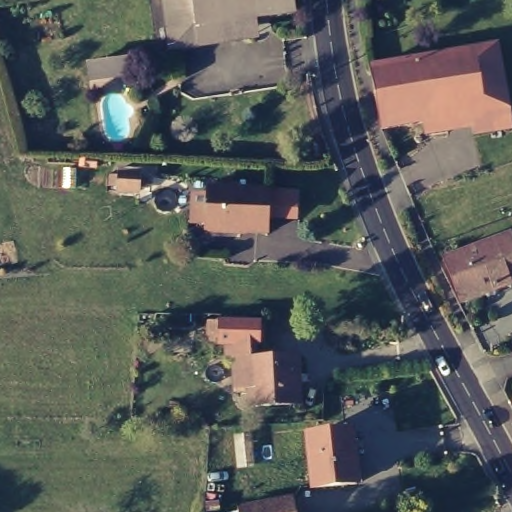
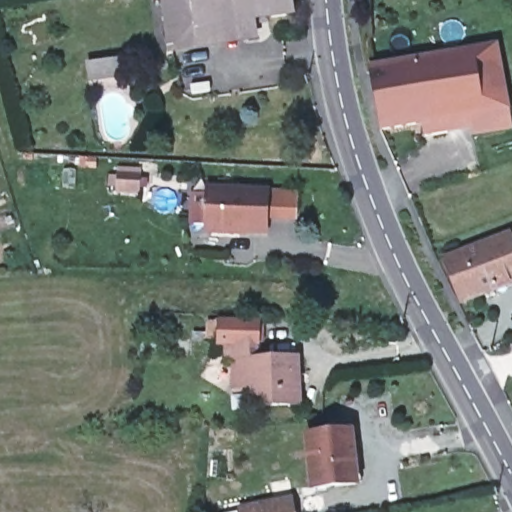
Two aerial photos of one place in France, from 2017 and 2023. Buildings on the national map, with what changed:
unchanged [(251,20),(199,27),(171,31),(167,0),(292,0),(294,14),(251,20)]
unchanged [(254,35),(173,46),(171,31),(199,27),(251,20),(254,35)]
unchanged [(512,127),(460,136),(457,116),(485,112),(474,50),(497,46),(512,127)]
unchanged [(425,133),(424,122),(382,130),(370,69),(474,50),(485,112),(457,116),(445,118),(447,129),(425,133)]
unchanged [(127,75),(92,79),(90,64),(125,60),(127,75)]
unchanged [(137,192),(119,191),(120,172),(139,174),(137,192)]
unchanged [(267,234),(206,231),(208,188),(270,190),(267,234)]
unchanged [(477,297),(475,292),(452,301),(435,260),(500,235),(502,237),(512,234),(512,277),(484,288),(485,293),(477,297)]
unchanged [(292,389),(294,410),(247,412),(247,393),(231,394),(230,368),(222,369),(222,349),(215,349),(215,348),(204,347),(204,327),(215,328),(255,329),(255,331),(257,331),(257,348),(255,348),(255,350),(252,350),(252,366),(290,365),(292,382),(295,381),(295,389),(292,389)]
unchanged [(352,482),(352,483),(310,488),(304,437),(346,433),(349,457),(355,456),(357,481),(352,482)]
unchanged [(296,512),(241,512),(240,504),(294,494),(296,512)]

